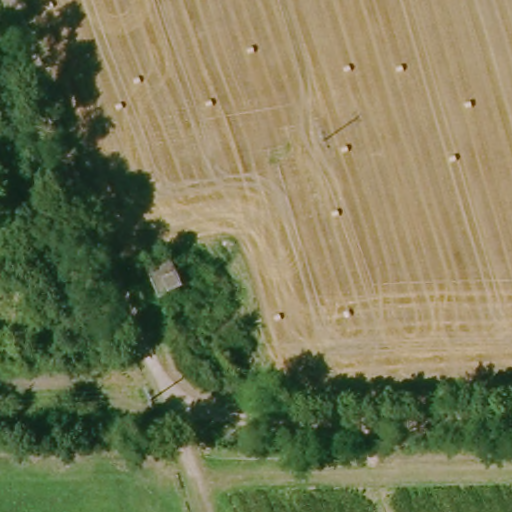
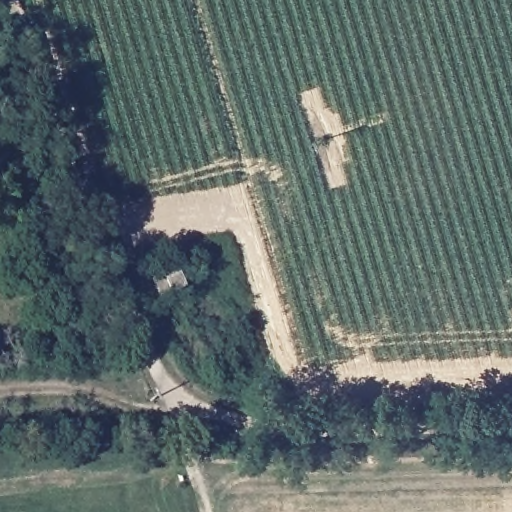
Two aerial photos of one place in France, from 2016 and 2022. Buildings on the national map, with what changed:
unchanged [(155,301),(141,276),(163,266),(174,291),(155,301)]

